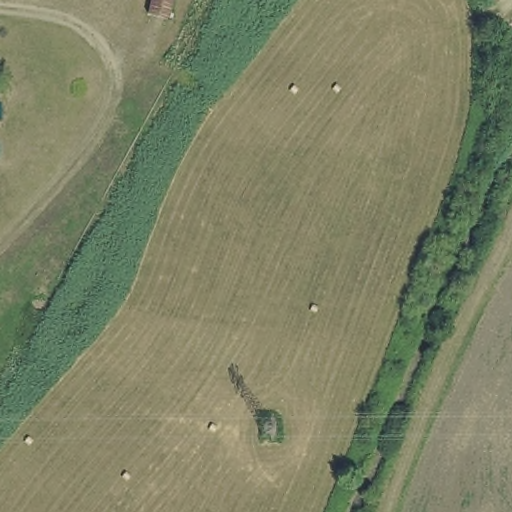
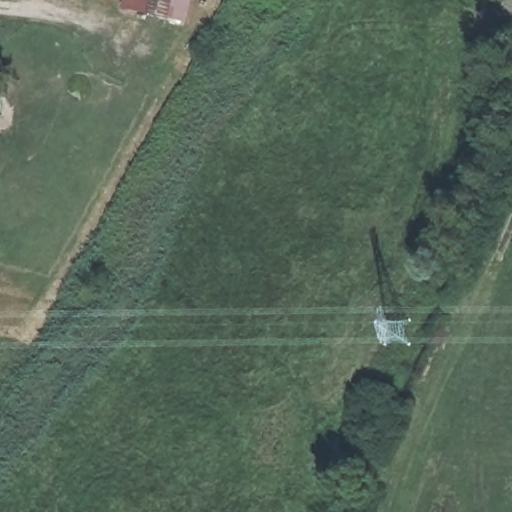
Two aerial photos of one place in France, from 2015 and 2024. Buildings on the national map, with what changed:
unchanged [(175,0),(169,28),(141,23),(145,0),(175,0)]

